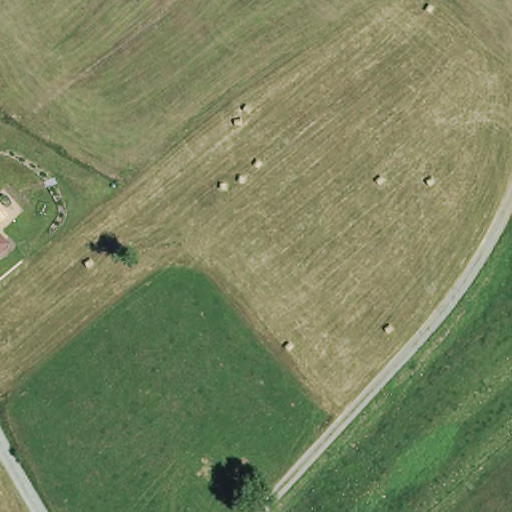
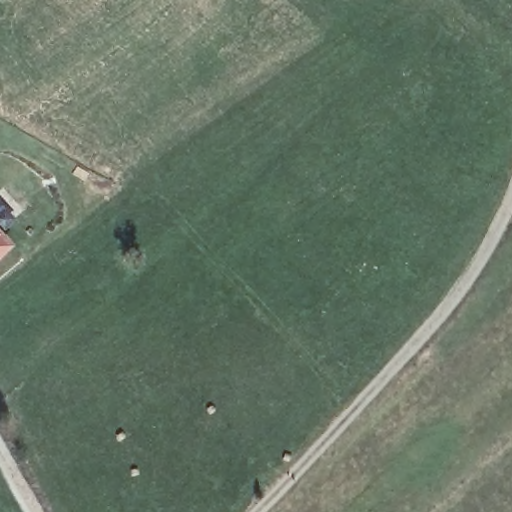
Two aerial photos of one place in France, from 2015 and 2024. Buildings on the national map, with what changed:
unchanged [(0,250),(0,230),(10,241),(0,250)]

